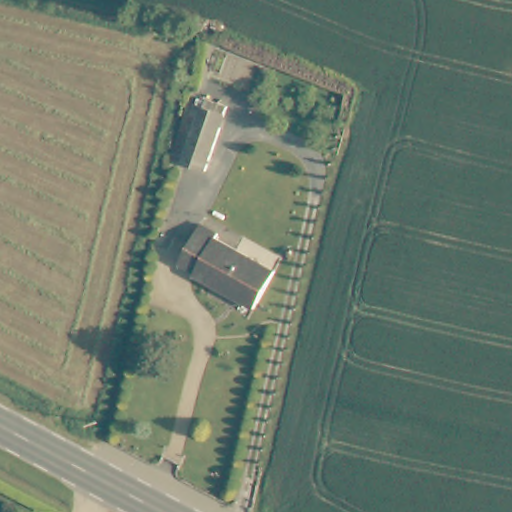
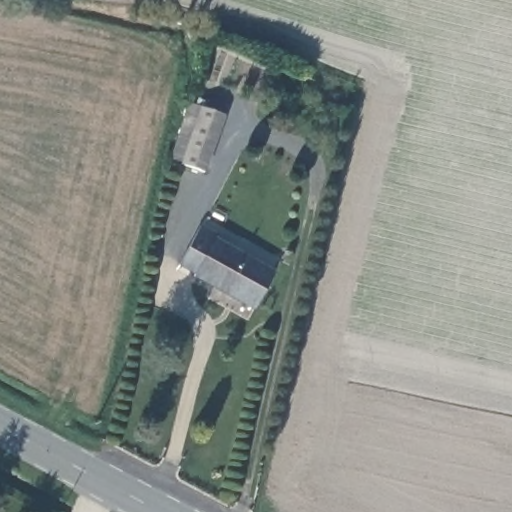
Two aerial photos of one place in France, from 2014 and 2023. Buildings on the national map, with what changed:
unchanged [(204,175),(181,166),(199,109),(222,117),(204,175)]
unchanged [(251,313),(192,278),(192,274),(177,264),(199,228),(215,237),(214,242),(274,277),(251,313)]

